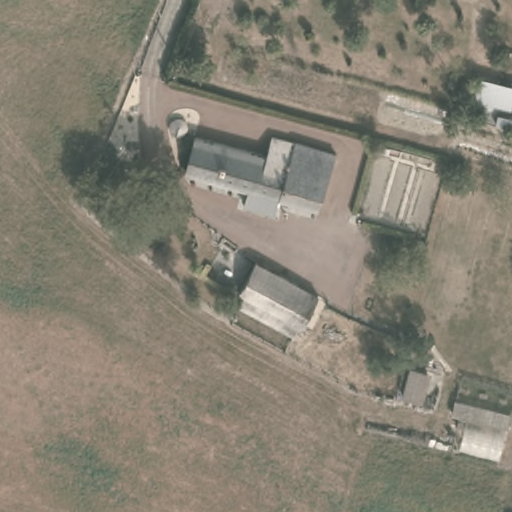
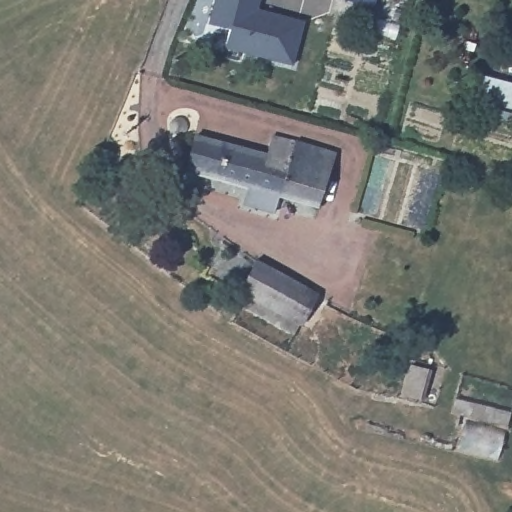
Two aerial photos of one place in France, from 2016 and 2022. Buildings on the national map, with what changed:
new [(224,49),(229,30),(205,24),(211,0),(259,0),(257,8),(303,22),(294,67),(224,49)]
unchanged [(477,80),(512,88),(512,121),(472,113),(477,80)]
unchanged [(326,210),(281,198),(277,215),(245,208),(248,190),(186,174),(196,136),(271,156),(276,139),(340,155),(326,210)]
unchanged [(298,285),(282,317),(252,302),(268,271),(298,285)]
unchanged [(282,317),(298,285),(327,301),(311,332),(282,317)]

